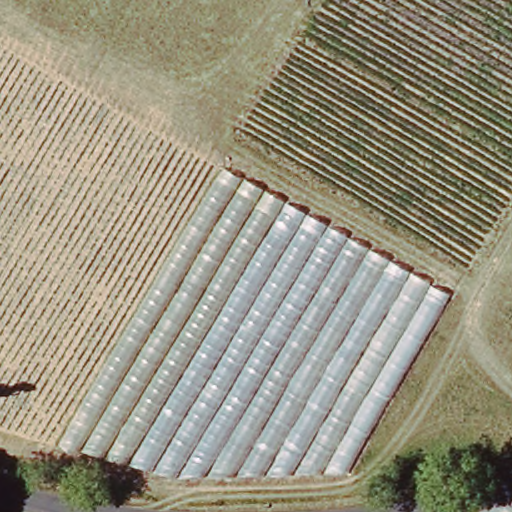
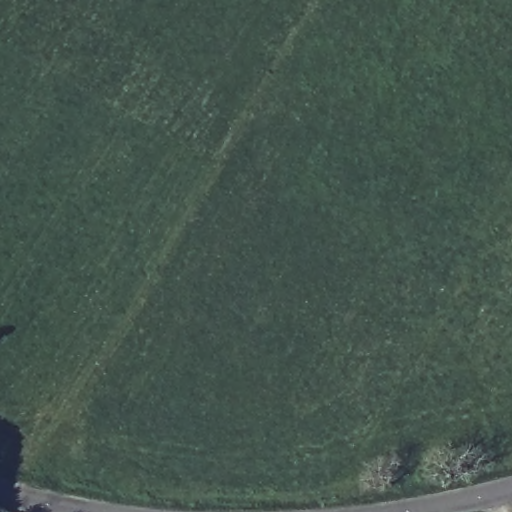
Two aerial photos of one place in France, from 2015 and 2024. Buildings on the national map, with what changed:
demolished [(323,0),(512,0),(512,150),(303,33),(323,0)]
demolished [(446,294),(342,475),(165,478),(55,446),(221,166),(446,294)]

